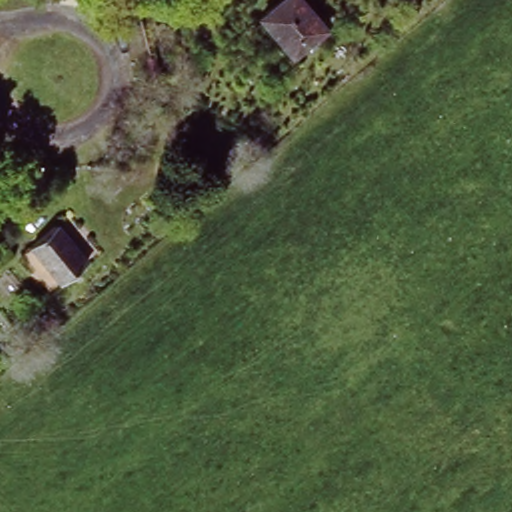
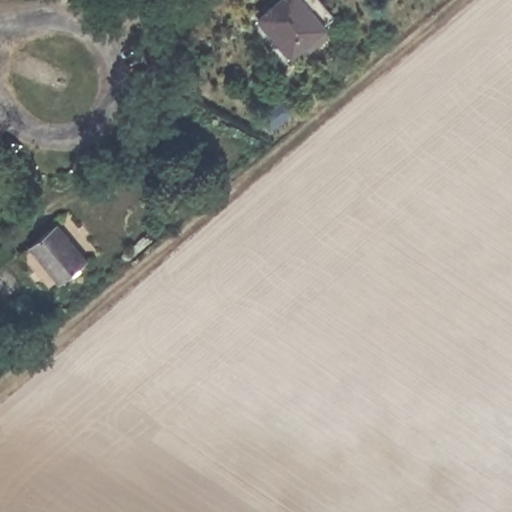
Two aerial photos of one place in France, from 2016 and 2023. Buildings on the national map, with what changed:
unchanged [(261,12),(275,0),(307,0),(325,23),(293,48),(285,55),(253,19),(261,12)]
unchanged [(90,261),(65,279),(36,243),(60,224),(90,261)]

